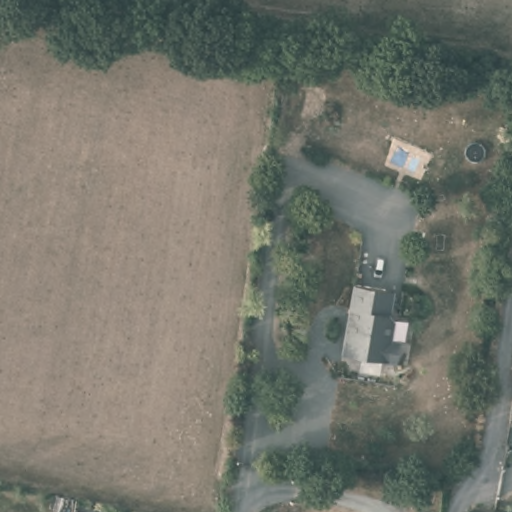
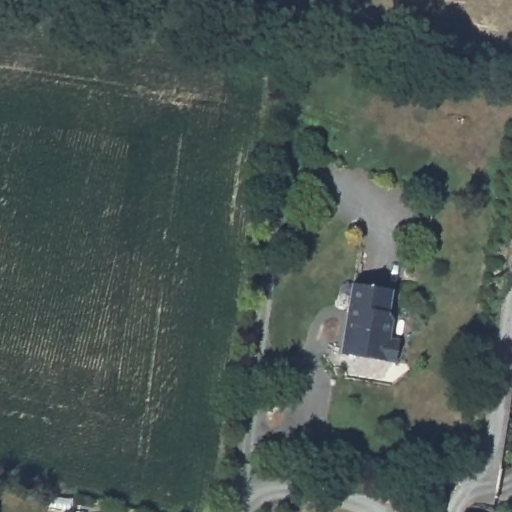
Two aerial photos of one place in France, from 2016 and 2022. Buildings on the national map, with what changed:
unchanged [(379,305),(386,306),(392,311),(388,334),(398,334),(394,356),(340,347),(351,276),(383,282),(379,305)]

